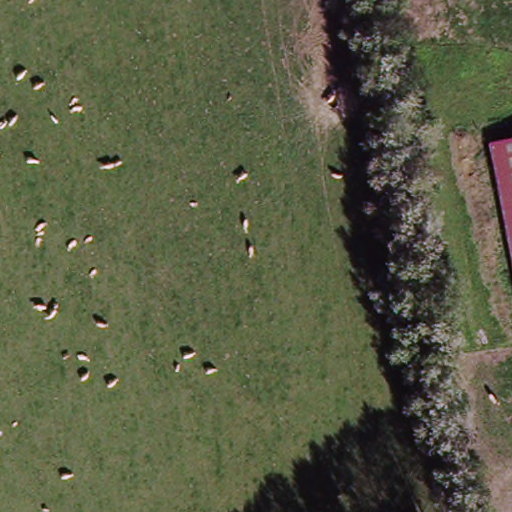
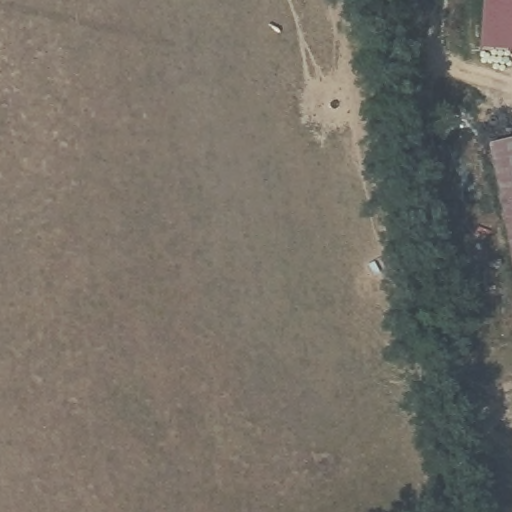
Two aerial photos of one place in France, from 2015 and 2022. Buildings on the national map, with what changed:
new [(512,0),(512,61),(484,59),(489,0),(512,0)]
unchanged [(512,143),(512,231),(498,146),(512,143)]

